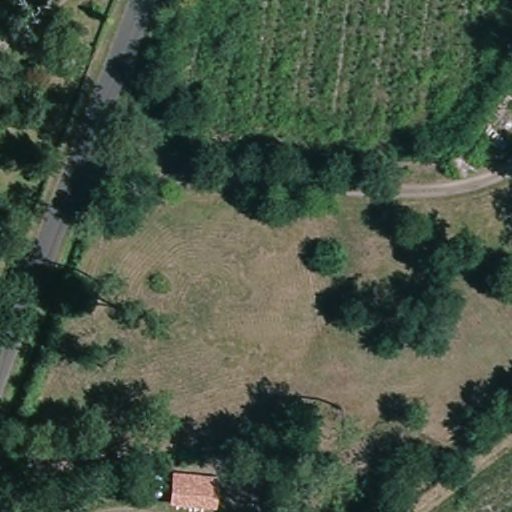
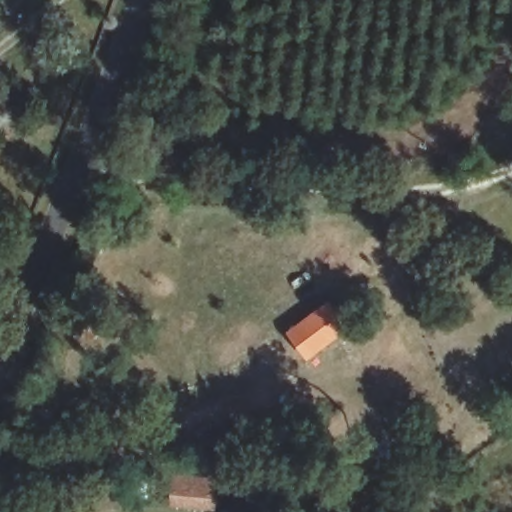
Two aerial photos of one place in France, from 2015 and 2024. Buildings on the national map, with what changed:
new [(327,302),(348,330),(306,361),(286,333),(327,302)]
unchanged [(217,477),(216,510),(169,506),(172,474),(217,477)]

